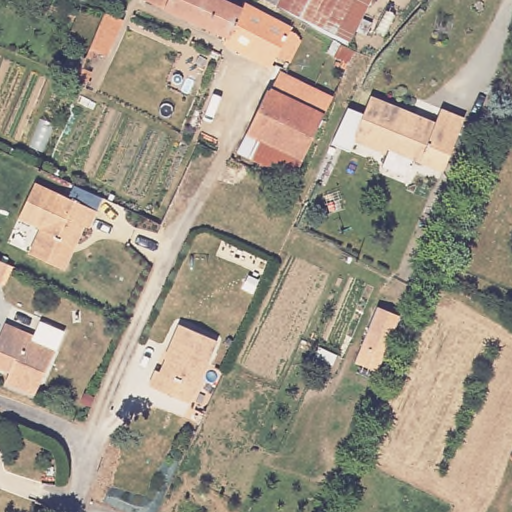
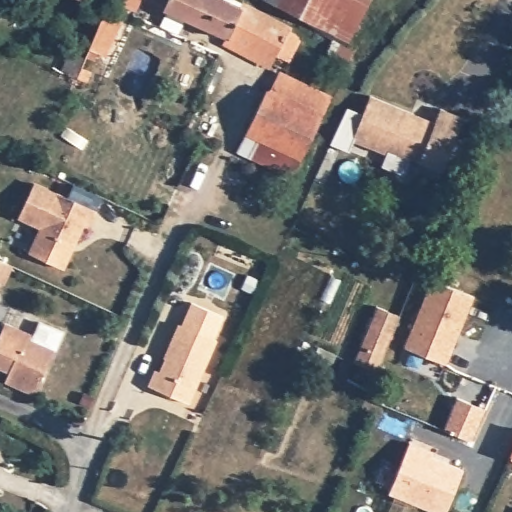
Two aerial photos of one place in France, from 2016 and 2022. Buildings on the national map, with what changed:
unchanged [(244,0),(260,0),(256,9),(295,32),(299,41),(288,60),(276,54),(272,62),(225,42),(227,36),(147,0),(227,0),(241,6),(244,0)]
unchanged [(269,0),(279,0),(277,5),(269,0)]
unchanged [(279,0),(334,0),(320,27),(277,5),(279,0)]
unchanged [(326,51),(335,36),(320,27),(334,0),(369,0),(347,42),(356,47),(348,63),(326,51)]
unchanged [(85,56),(89,47),(104,11),(116,15),(122,17),(104,55),(97,51),(93,60),(85,56)]
unchanged [(81,65),(91,70),(86,81),(76,76),(81,65)]
unchanged [(331,97),(323,114),(273,90),(282,72),(331,97)]
unchanged [(268,87),(273,90),(323,114),(302,159),(247,132),(268,87)]
unchanged [(382,147),(380,151),(348,138),(366,94),(431,121),(436,107),(460,116),(437,170),(382,147)]
unchanged [(293,177),(284,174),(236,151),(247,132),(302,159),(293,177)]
unchanged [(29,251),(41,225),(18,215),(34,181),(57,192),(57,191),(95,209),(87,225),(82,224),(62,266),(29,251)]
unchanged [(0,276),(0,258),(7,261),(0,276)]
new [(445,363),(403,347),(432,279),(473,296),(445,363)]
unchanged [(400,316),(378,372),(353,362),(377,307),(400,316)]
unchanged [(29,336),(35,322),(64,335),(53,359),(32,401),(7,388),(11,380),(0,375),(0,344),(7,327),(29,336)]
unchanged [(187,401),(147,384),(153,368),(158,370),(168,347),(167,346),(177,322),(215,338),(187,401)]
new [(471,441),(442,430),(456,396),(486,409),(471,441)]
new [(444,512),(433,512),(387,493),(409,442),(433,451),(431,455),(463,469),(444,512)]
unchanged [(507,460),(512,452),(512,462),(507,460)]

